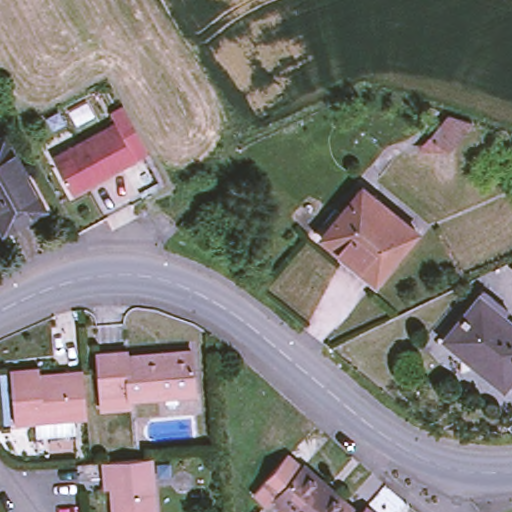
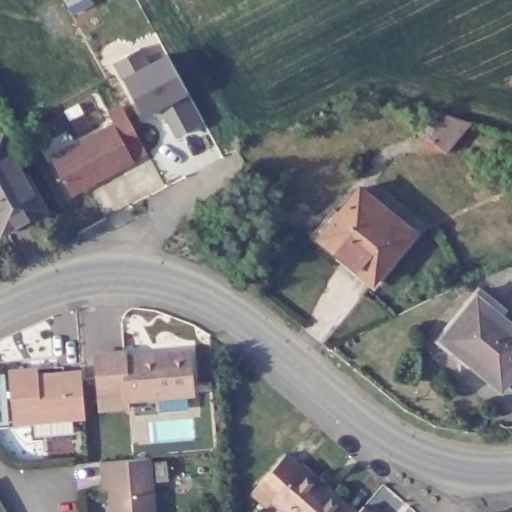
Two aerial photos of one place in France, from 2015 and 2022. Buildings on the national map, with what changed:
new [(157,111),(145,117),(116,63),(141,50),(150,67),(169,56),(205,123),(179,137),(169,118),(162,121),(157,111)]
unchanged [(470,125),(450,152),(432,139),(447,118),(470,125)]
unchanged [(115,125),(135,162),(73,196),(53,158),(115,125)]
unchanged [(44,214),(5,235),(0,226),(0,142),(4,140),(44,214)]
unchanged [(417,234),(374,285),(322,241),(364,191),(417,234)]
unchanged [(502,388),(442,341),(476,300),(482,292),(508,313),(502,321),(512,329),(512,376),(502,388)]
unchanged [(103,395),(100,357),(128,355),(129,358),(170,355),(192,353),(195,395),(132,401),(132,408),(104,410),(103,395)]
unchanged [(84,423),(14,427),(10,373),(37,372),(38,377),(63,376),(81,376),(84,423)]
unchanged [(110,492),(102,492),(100,481),(99,462),(149,460),(153,512),(111,512),(110,492)]
unchanged [(336,512),(290,512),(275,499),(305,462),(326,478),(335,487),(332,491),(345,502),(336,512)]
unchanged [(368,504),(377,512),(361,512),(368,504)]

